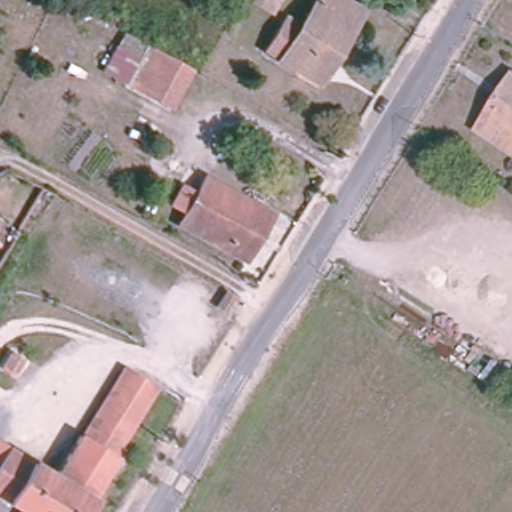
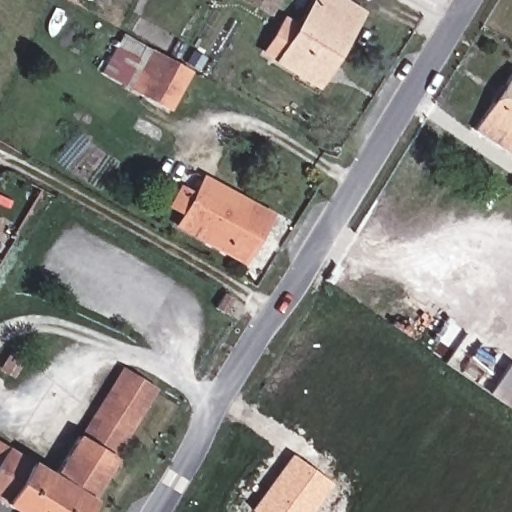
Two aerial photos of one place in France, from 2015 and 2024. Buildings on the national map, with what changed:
unchanged [(251,0),(283,0),(276,13),(251,0)]
unchanged [(263,51),(285,14),(300,23),(314,0),(351,0),(364,7),(322,89),(263,51)]
unchanged [(131,66),(114,58),(125,34),(180,65),(156,108),(129,93),(119,88),(131,66)]
unchanged [(485,104),(501,81),(512,65),(512,153),(470,126),(485,104)]
unchanged [(182,231),(176,228),(184,214),(168,203),(187,171),(209,181),(212,177),(274,212),(272,216),(244,266),(182,231)]
unchanged [(225,322),(217,318),(225,301),(229,303),(234,306),(225,322)]
unchanged [(128,357),(164,380),(124,442),(89,421),(128,357)]
unchanged [(124,442),(79,512),(23,512),(0,498),(0,429),(62,466),(89,421),(124,442)]
new [(290,454),(331,483),(311,512),(254,512),(249,509),(290,454)]

